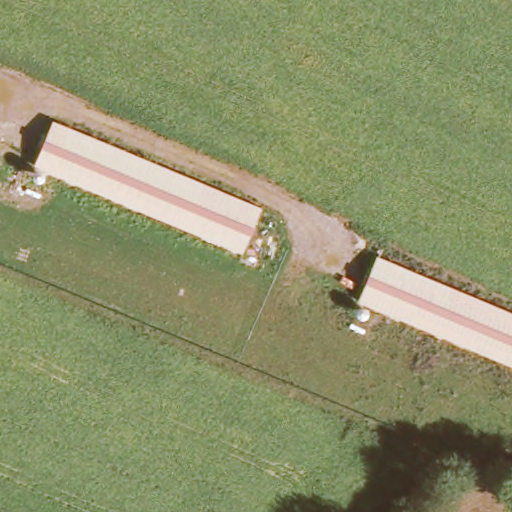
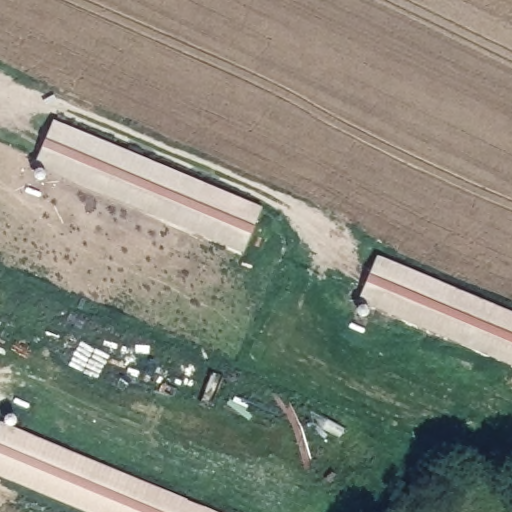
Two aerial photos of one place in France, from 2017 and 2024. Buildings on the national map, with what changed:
unchanged [(243,253),(35,166),(53,121),(261,207),(243,253)]
unchanged [(512,313),(512,366),(357,302),(377,257),(512,313)]
new [(0,472),(0,427),(2,422),(227,512),(94,512),(0,472)]

